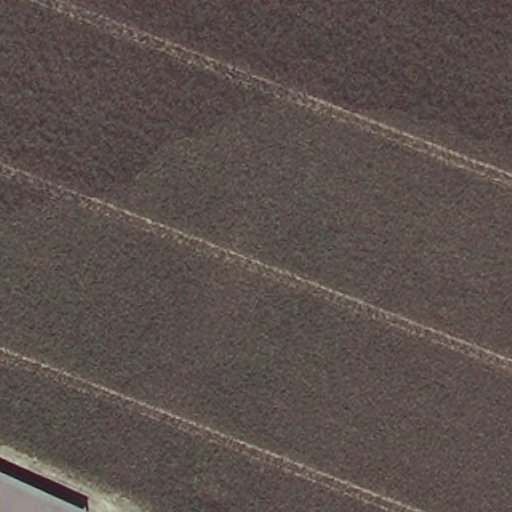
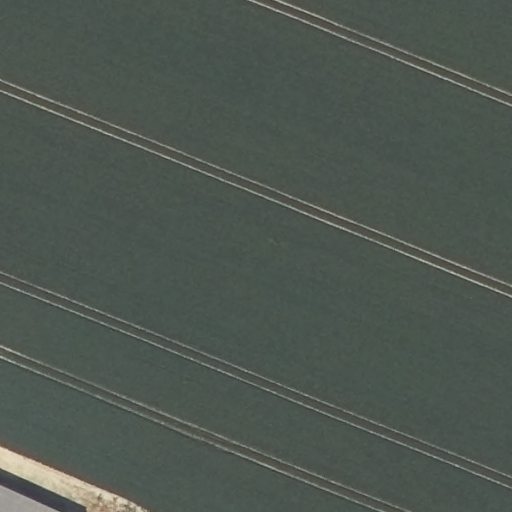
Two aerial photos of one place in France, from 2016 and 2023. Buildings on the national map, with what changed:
unchanged [(64,512),(0,512),(0,484),(64,512)]

